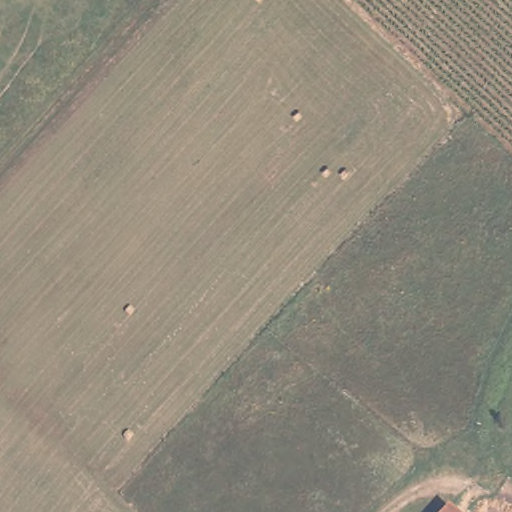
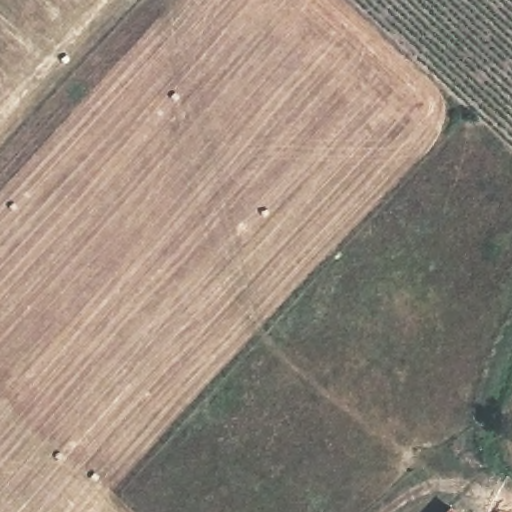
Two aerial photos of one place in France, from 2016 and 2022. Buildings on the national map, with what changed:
unchanged [(457,512),(444,512),(448,507),(457,512)]

